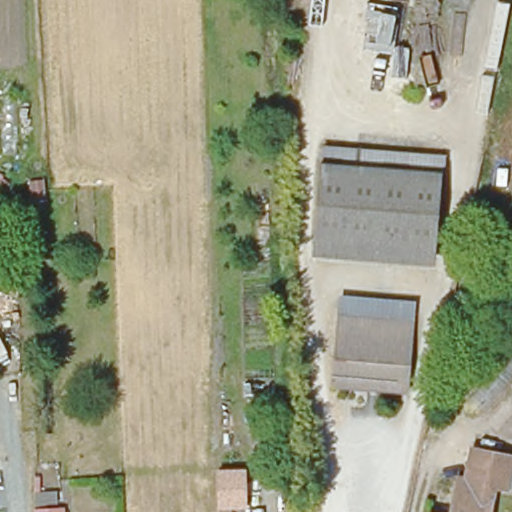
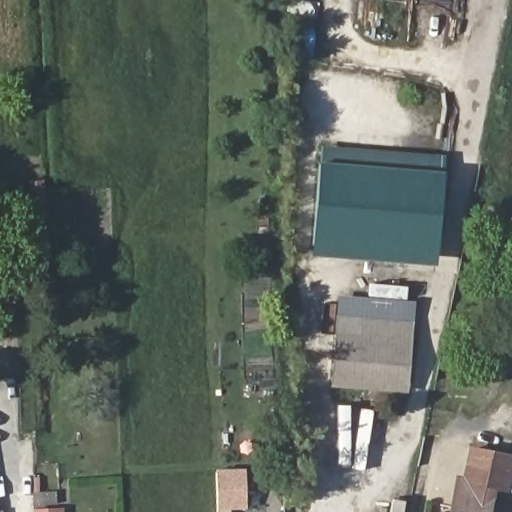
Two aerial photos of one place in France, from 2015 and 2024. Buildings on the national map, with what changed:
unchanged [(441,173),(434,254),(311,242),(320,163),(441,173)]
unchanged [(47,204),(30,205),(30,175),(47,175),(47,204)]
unchanged [(331,380),(335,318),(414,326),(407,388),(390,386),(362,383),(331,380)]
unchanged [(512,462),(512,498),(491,494),(493,486),(461,482),(466,452),(512,462)]
unchanged [(232,512),(218,512),(218,508),(215,469),(245,467),(247,508),(232,508),(232,512)]
unchanged [(491,494),(489,512),(451,512),(455,481),(461,482),(493,486),(491,494)]
unchanged [(38,489),(45,489),(46,502),(68,503),(69,512),(39,512),(38,489)]

